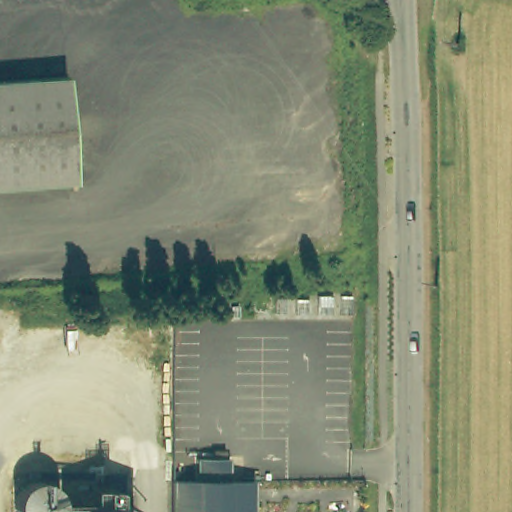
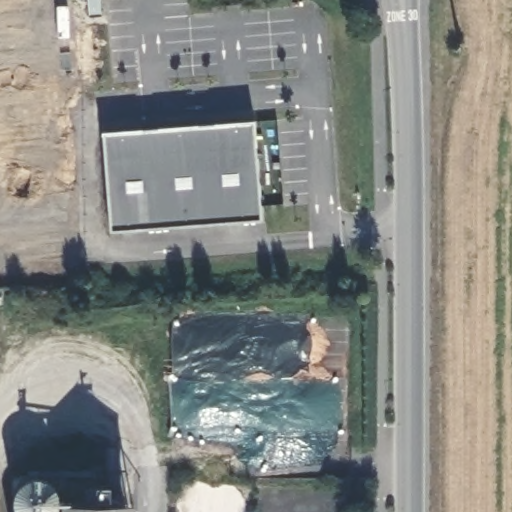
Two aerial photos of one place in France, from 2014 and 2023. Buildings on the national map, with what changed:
demolished [(69,180),(0,186),(0,81),(61,76),(69,180)]
new [(255,122),(262,221),(110,231),(103,133),(255,122)]
unchanged [(169,474),(193,474),(193,470),(193,452),(226,452),(226,470),(226,474),(250,474),(250,512),(168,512),(169,474)]
unchanged [(13,508),(11,502),(11,495),(12,489),(15,483),(20,479),(26,476),(31,475),(38,476),(44,478),(49,482),(52,487),(55,493),(55,499),(54,505),(51,511),(50,512),(16,512),(13,508)]
unchanged [(61,498),(129,499),(129,512),(60,512),(61,498)]

